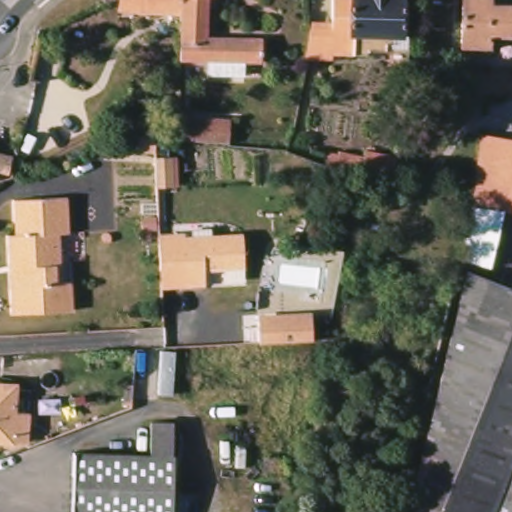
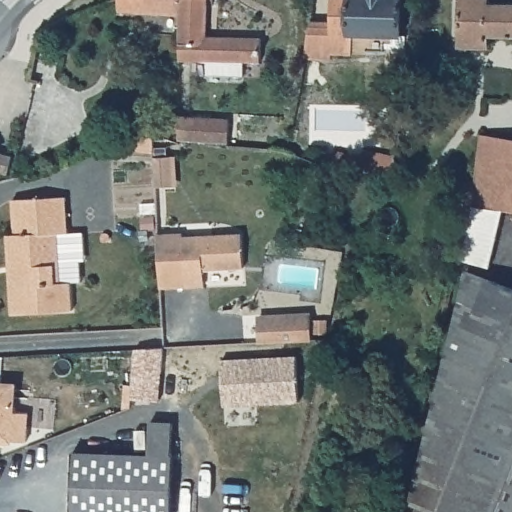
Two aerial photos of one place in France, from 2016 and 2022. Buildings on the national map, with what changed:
unchanged [(181,15),(118,11),(119,0),(182,0),(181,15)]
unchanged [(208,75),(208,61),(180,61),(181,15),(182,0),(208,0),(207,37),(262,39),(261,62),(244,62),(244,76),(208,75)]
unchanged [(412,48),(390,48),(390,51),(372,51),(372,55),(337,54),(337,59),(312,59),(310,59),(315,27),(336,27),(337,0),(408,0),(407,36),(412,36),(412,48)]
unchanged [(490,3),(512,3),(512,36),(489,36),(489,47),(461,47),(462,0),(490,0),(490,3)]
unchanged [(59,74),(46,73),(48,47),(61,49),(59,74)]
unchanged [(230,120),(229,145),(179,141),(179,117),(230,120)]
unchanged [(481,134),(512,138),(512,211),(503,210),(469,205),(481,134)]
unchanged [(386,183),(387,177),(326,165),(329,153),(338,155),(338,152),(364,158),(365,151),(397,157),(395,178),(393,178),(392,184),(386,183)]
unchanged [(8,175),(0,173),(0,153),(12,156),(8,175)]
new [(171,158),(172,188),(156,188),(154,159),(171,158)]
unchanged [(8,235),(14,235),(13,200),(66,197),(68,233),(58,234),(61,284),(71,283),(72,311),(11,314),(10,290),(9,264),(8,235)]
unchanged [(503,210),(490,267),(459,261),(469,205),(503,210)]
unchanged [(155,217),(156,230),(142,231),(141,217),(155,217)]
unchanged [(244,268),(204,270),(205,287),(161,289),(158,239),(158,236),(184,235),(184,238),(242,235),(244,268)]
unchanged [(494,512),(409,512),(467,272),(512,289),(512,466),(494,512)]
unchanged [(315,341),(259,344),(257,312),(313,311),(315,341)]
new [(299,402),(225,406),(223,383),(223,376),(222,360),(297,356),(299,402)]
unchanged [(15,412),(30,413),(27,442),(12,442),(11,443),(0,442),(0,383),(16,384),(15,412)]
unchanged [(151,422),(173,423),(172,456),(174,456),(172,512),(71,512),(73,453),(150,455),(151,422)]
unchanged [(494,512),(512,466),(512,512),(494,512)]

